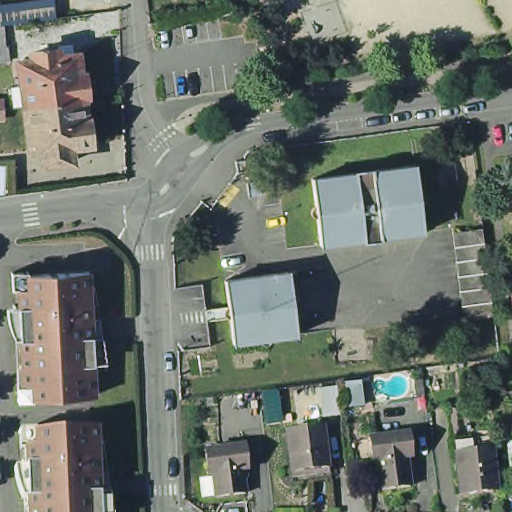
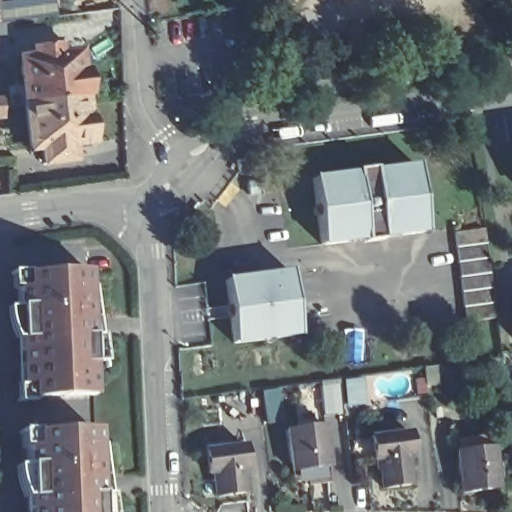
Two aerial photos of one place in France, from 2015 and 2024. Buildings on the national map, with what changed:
unchanged [(24,0),(56,0),(58,14),(2,22),(0,23),(0,3),(24,0)]
unchanged [(97,119),(100,145),(80,147),(81,163),(53,166),(50,151),(40,153),(35,108),(20,110),(17,92),(32,89),(29,65),(43,63),(42,55),(66,52),(67,59),(87,57),(91,100),(93,119),(97,119)]
unchanged [(12,103),(12,111),(13,119),(0,120),(0,104),(12,103)]
unchanged [(370,244),(369,236),(351,239),(352,245),(327,247),(319,181),(422,168),(432,234),(407,237),(406,231),(388,234),(389,241),(370,244)]
unchanged [(253,178),(255,190),(242,191),(240,179),(253,178)]
unchanged [(461,330),(450,241),(479,237),(492,325),(461,330)]
unchanged [(17,395),(17,377),(22,378),(22,359),(27,359),(27,345),(21,345),(20,331),(15,331),(11,322),(8,313),(7,305),(7,300),(18,300),(17,282),(12,282),(12,264),(26,264),(26,266),(44,266),(87,264),(88,279),(94,278),(106,356),(92,355),(94,388),(50,391),(33,392),(33,395),(17,395)]
unchanged [(288,275),(296,338),(232,346),(223,283),(288,275)]
unchanged [(512,289),(512,297),(511,289),(512,289)]
unchanged [(362,384),(364,407),(348,409),(346,386),(362,384)]
unchanged [(337,387),(340,416),(322,418),(318,389),(337,387)]
unchanged [(38,505),(33,505),(32,490),(27,490),(22,482),(20,470),(19,460),(31,460),(30,441),(24,441),(23,424),(38,423),(39,425),(55,425),(100,423),(101,439),(107,439),(116,512),(38,512),(38,505)]
unchanged [(323,427),(328,469),(292,473),(286,431),(323,427)]
unchanged [(410,438),(412,460),(407,461),(410,490),(381,493),(377,464),(372,465),(369,443),(410,438)]
unchanged [(493,449),(498,489),(462,494),(457,453),(493,449)]
unchanged [(254,477),(248,478),(251,502),(222,505),(219,480),(213,481),(210,459),(252,454),(254,477)]

